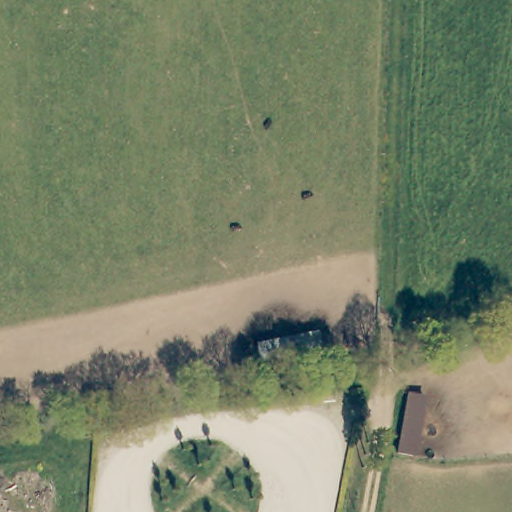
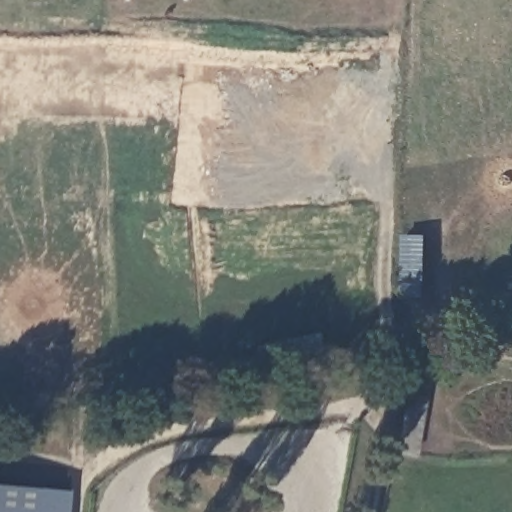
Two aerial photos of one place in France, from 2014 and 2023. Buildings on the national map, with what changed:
new [(0,485),(67,492),(66,512),(0,512),(0,485)]

